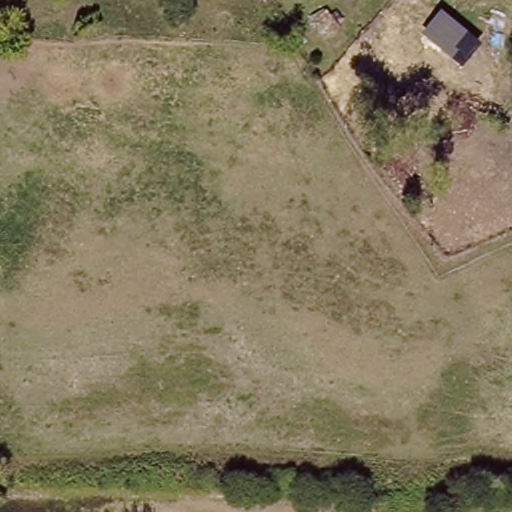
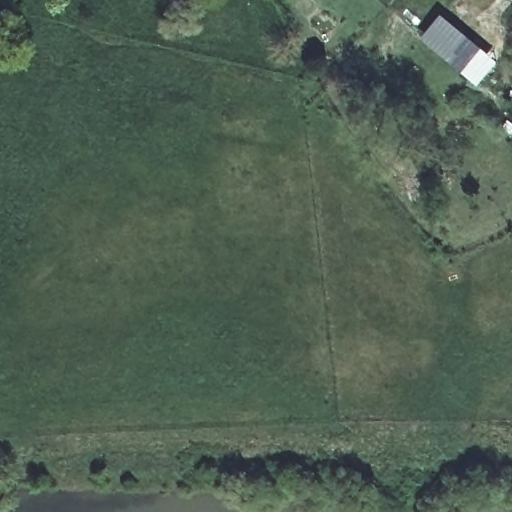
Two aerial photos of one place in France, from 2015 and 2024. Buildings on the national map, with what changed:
unchanged [(482,46),(461,71),(420,37),(440,13),(482,46)]

